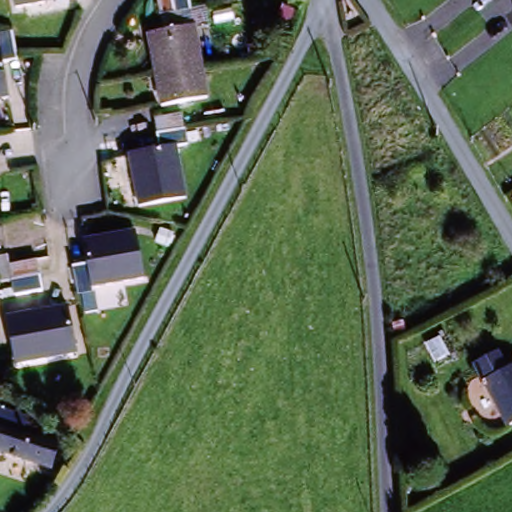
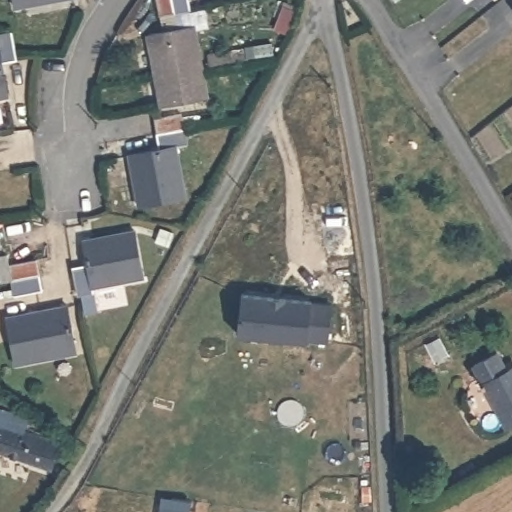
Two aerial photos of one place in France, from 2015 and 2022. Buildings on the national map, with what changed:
unchanged [(14,14),(12,0),(75,0),(76,5),(14,14)]
unchanged [(193,13),(177,16),(160,19),(158,0),(191,0),(193,13)]
unchanged [(158,78),(152,38),(197,31),(203,70),(158,78)]
unchanged [(0,103),(0,57),(1,57),(0,51),(0,42),(13,40),(15,52),(17,68),(2,69),(7,101),(0,103)]
unchanged [(207,102),(162,110),(158,78),(203,70),(203,76),(207,102)]
unchanged [(156,136),(155,135),(154,120),(183,117),(185,130),(185,133),(187,148),(180,150),(188,199),(142,206),(135,156),(157,153),(156,136)]
unchanged [(80,296),(75,271),(88,266),(87,246),(136,234),(145,284),(80,296)]
unchanged [(1,250),(0,251),(0,245),(1,250)]
unchanged [(14,283),(11,267),(38,262),(41,278),(45,293),(17,298),(14,283)]
new [(332,304),(328,343),(237,336),(242,294),(332,304)]
unchanged [(70,310),(75,358),(17,366),(10,318),(70,310)]
unchanged [(480,396),(470,379),(501,361),(511,378),(512,378),(512,434),(489,391),(480,396)]
unchanged [(60,444),(52,471),(0,456),(0,426),(60,444)]

